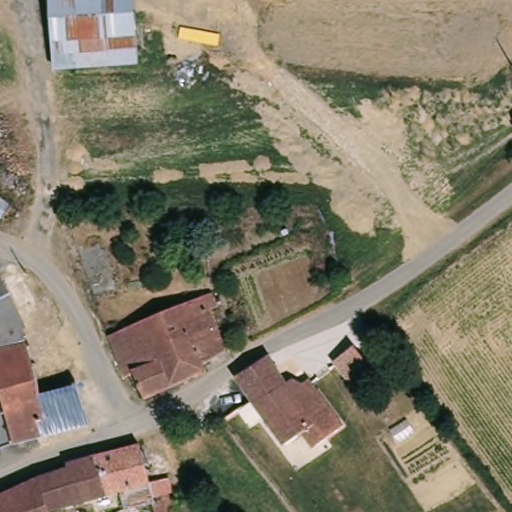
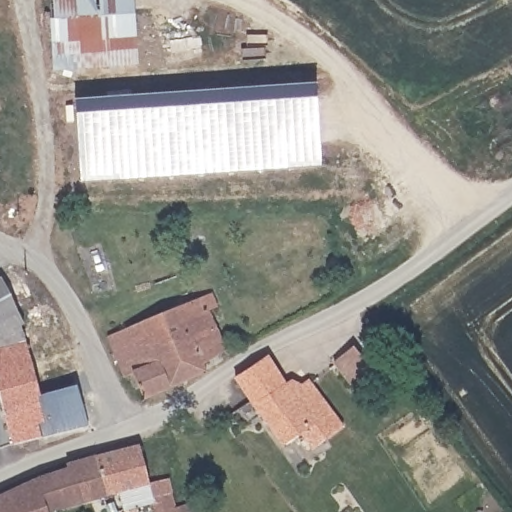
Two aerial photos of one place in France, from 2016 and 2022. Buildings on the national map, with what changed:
new [(139,65),(53,71),(49,0),(134,0),(139,65)]
new [(317,83),(322,166),(81,182),(75,99),(317,83)]
demolished [(12,208),(4,220),(0,218),(0,200),(12,208)]
demolished [(24,332),(24,331),(21,325),(3,279),(22,266),(38,301),(34,305),(46,322),(26,336),(24,332)]
unchanged [(2,278),(3,279),(21,325),(24,331),(24,332),(26,336),(29,345),(37,377),(42,392),(43,398),(45,397),(60,393),(79,388),(80,387),(92,427),(31,447),(30,447),(27,439),(15,442),(0,388),(0,279),(2,278)]
unchanged [(135,373),(126,377),(110,335),(212,291),(219,306),(211,310),(227,349),(204,363),(207,369),(145,397),(135,373)]
unchanged [(353,349),(378,382),(357,396),(332,364),(353,349)]
unchanged [(287,378),(254,399),(246,386),(241,379),(237,373),(271,352),(273,358),(278,364),(287,378)]
unchanged [(287,378),(290,382),(301,400),(315,420),(284,443),(254,399),(287,378)]
unchanged [(293,378),(303,383),(310,379),(342,426),(312,449),(301,430),(315,420),(301,400),(290,382),(287,378),(293,378)]
unchanged [(56,512),(0,512),(0,495),(70,468),(69,462),(143,434),(152,477),(56,512)]
unchanged [(186,512),(163,512),(157,494),(165,492),(164,473),(174,470),(186,512)]

